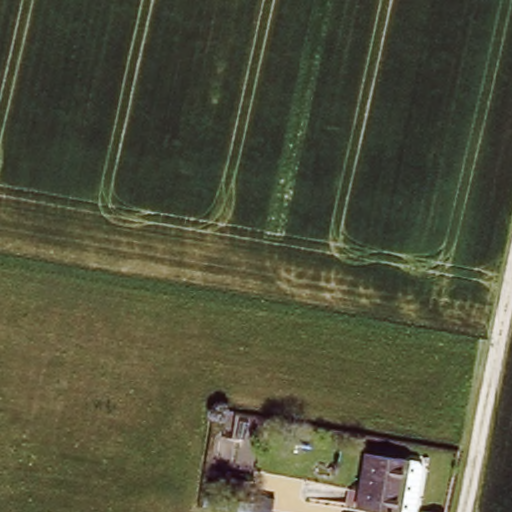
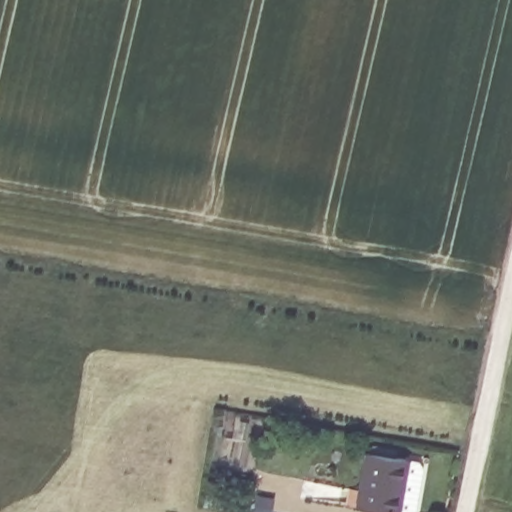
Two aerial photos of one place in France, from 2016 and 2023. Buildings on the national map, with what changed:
unchanged [(365,446),(405,452),(417,463),(410,507),(395,504),(395,507),(356,501),(365,446)]

